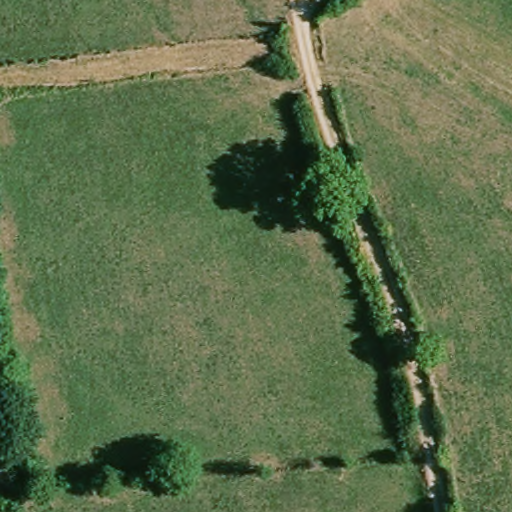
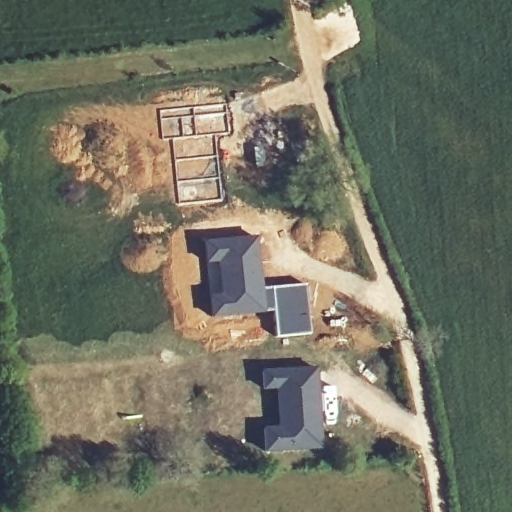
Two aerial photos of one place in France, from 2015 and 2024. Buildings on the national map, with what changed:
new [(259,235),(263,287),(306,283),(311,334),(275,338),(273,312),(211,318),(201,239),(259,235)]
new [(318,366),(323,449),(262,452),(261,426),(276,425),(274,392),(261,392),(260,369),(318,366)]

